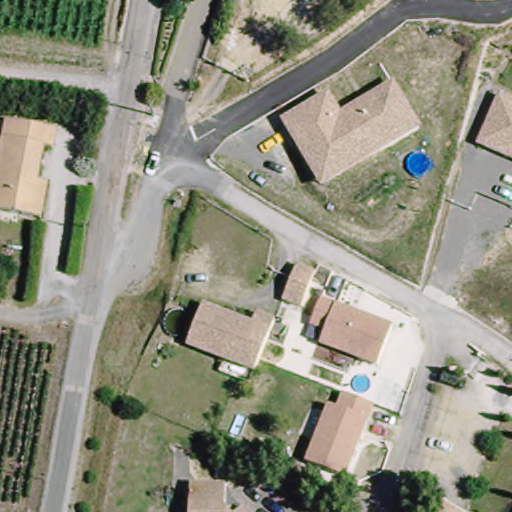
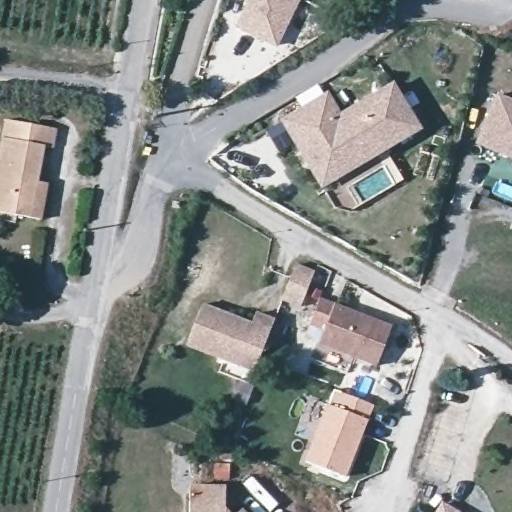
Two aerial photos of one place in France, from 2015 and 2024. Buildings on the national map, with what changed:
new [(249,0),(297,0),(300,1),(277,50),(236,28),(249,0)]
unchanged [(278,150),(265,129),(282,118),(330,89),(343,111),(391,83),(395,81),(423,128),(391,148),(324,188),(295,140),(278,150)]
unchanged [(500,90),(512,95),(512,157),(477,141),(500,90)]
unchanged [(45,219),(33,216),(0,210),(0,177),(13,119),(61,131),(59,149),(49,146),(42,180),(52,182),(45,219)]
unchanged [(321,271),(306,305),(287,299),(303,264),(321,271)]
unchanged [(319,343),(324,330),(311,323),(322,297),(336,303),(391,324),(391,330),(377,366),(319,343)]
unchanged [(256,369),(194,342),(210,304),(257,322),(262,310),(280,318),(256,369)]
unchanged [(305,459),(328,402),(337,406),(342,391),(375,404),(368,419),(346,475),(305,459)]
unchanged [(201,488),(227,491),(225,512),(197,512),(201,488)]
unchanged [(440,500),(461,512),(433,512),(440,500)]

